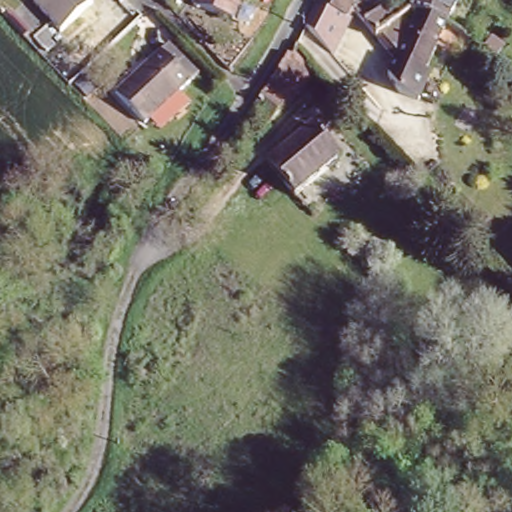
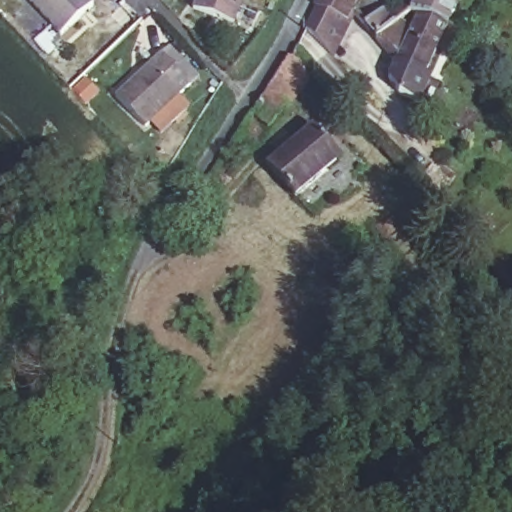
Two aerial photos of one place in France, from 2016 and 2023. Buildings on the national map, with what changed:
unchanged [(63,37),(31,0),(86,0),(93,7),(63,37)]
unchanged [(192,12),(197,0),(243,0),(233,27),(192,12)]
unchanged [(317,9),(314,7),(318,0),(357,0),(354,5),(351,12),(346,22),(317,9)]
unchanged [(416,7),(419,0),(461,0),(451,23),(421,10),(416,7)]
unchanged [(407,96),(397,90),(388,75),(394,60),(376,40),(381,36),(369,22),(388,6),(400,20),(412,25),(419,9),(451,23),(429,74),(433,76),(419,103),(407,96)]
unchanged [(338,35),(331,32),(326,44),(304,34),(313,14),(341,27),(338,35)]
unchanged [(120,95),(167,50),(174,42),(204,75),(198,81),(151,128),(120,95)]
unchanged [(249,142),(241,154),(228,146),(254,107),(281,66),(286,57),(294,53),(308,67),(284,99),(286,101),(251,144),(249,142)]
unchanged [(311,71),(318,66),(333,83),(326,89),(311,71)]
unchanged [(278,155),(317,122),(341,150),(346,156),(301,195),(274,165),(266,156),(274,151),(278,155)]

